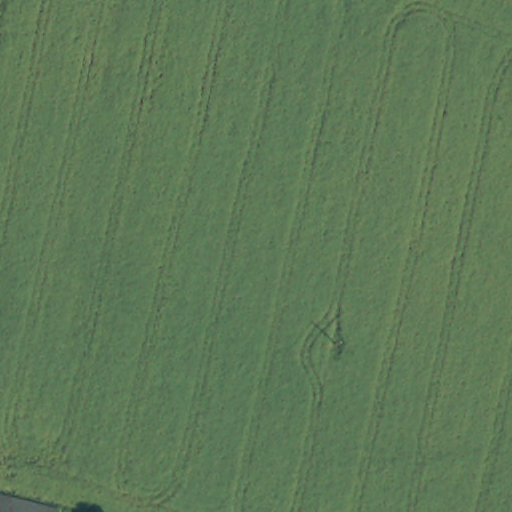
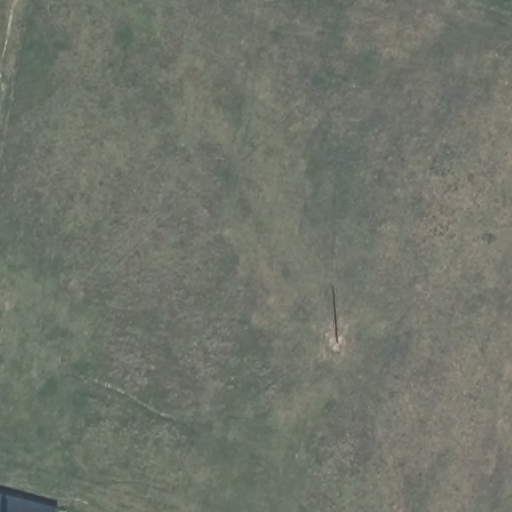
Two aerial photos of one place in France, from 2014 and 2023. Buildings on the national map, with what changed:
unchanged [(50,512),(0,512),(0,493),(50,512)]

